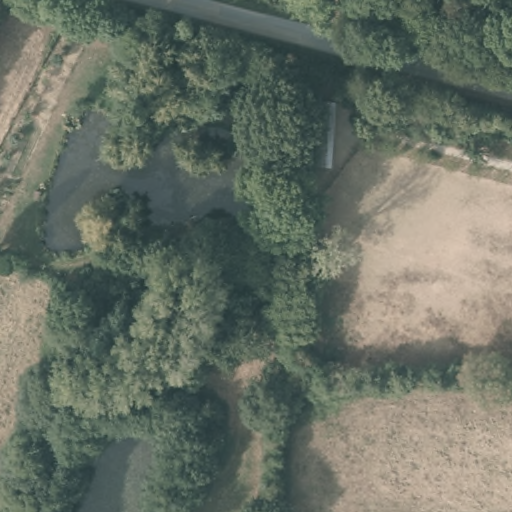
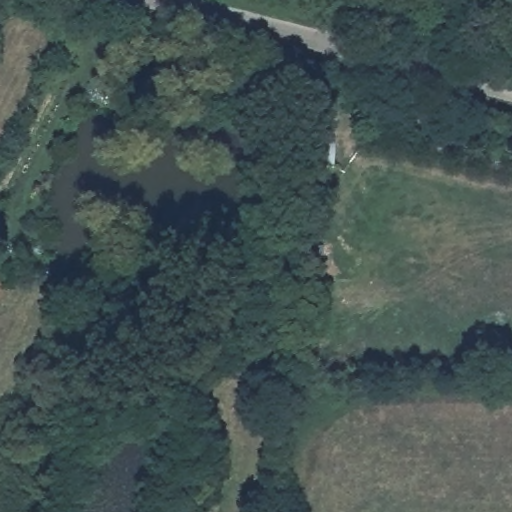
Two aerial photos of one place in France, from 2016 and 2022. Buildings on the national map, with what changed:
unchanged [(308,156),(308,94),(335,95),(335,156),(308,156)]

